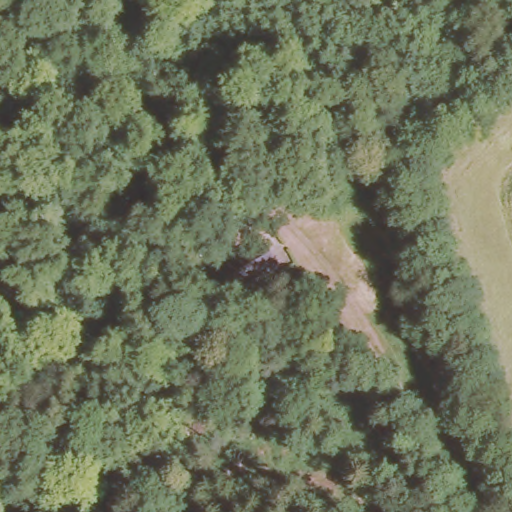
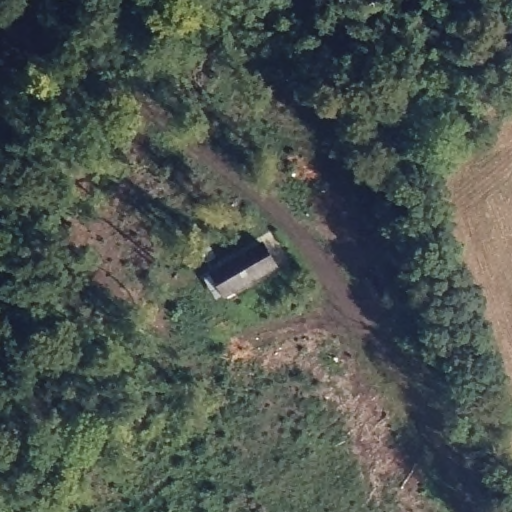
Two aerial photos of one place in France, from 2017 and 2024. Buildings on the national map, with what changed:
unchanged [(210,273),(255,246),(267,268),(222,296),(210,273)]

